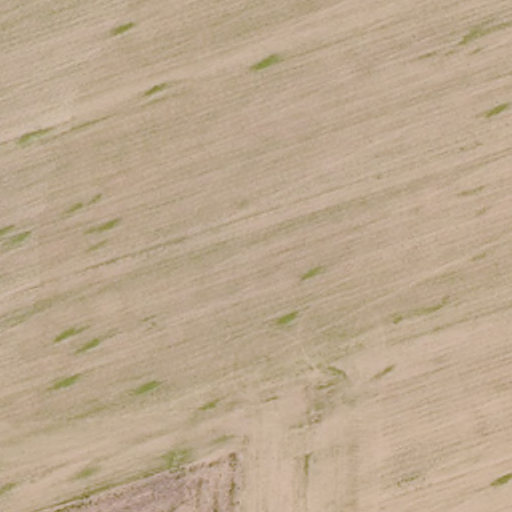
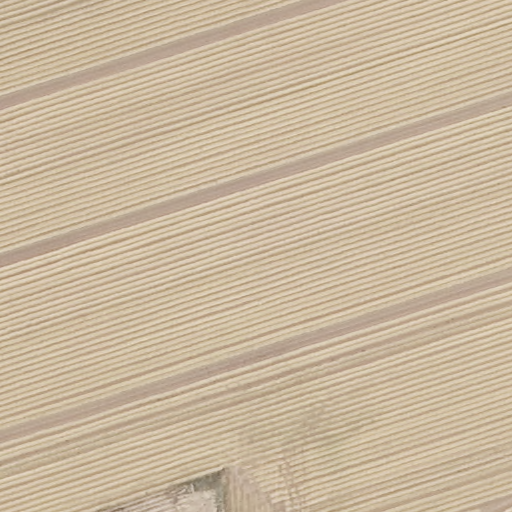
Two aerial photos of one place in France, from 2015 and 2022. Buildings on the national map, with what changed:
[]

